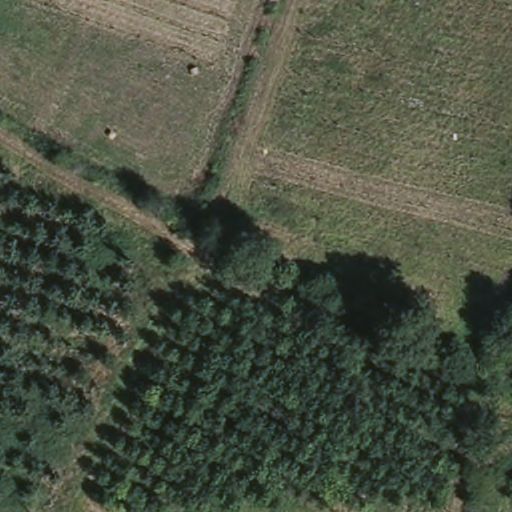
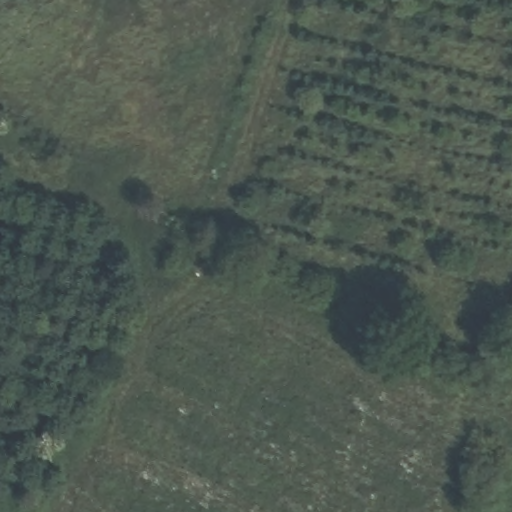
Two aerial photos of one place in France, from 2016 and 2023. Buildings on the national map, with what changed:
[]

